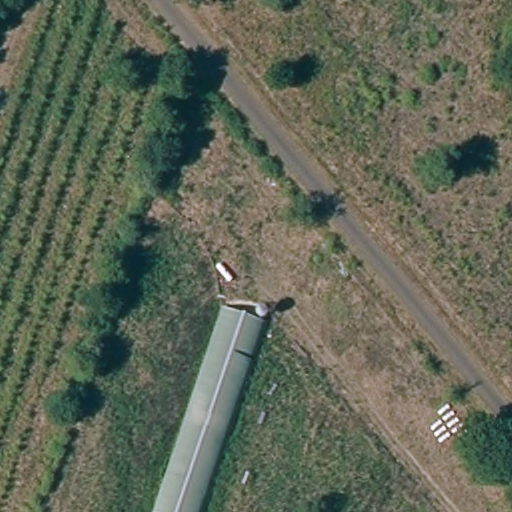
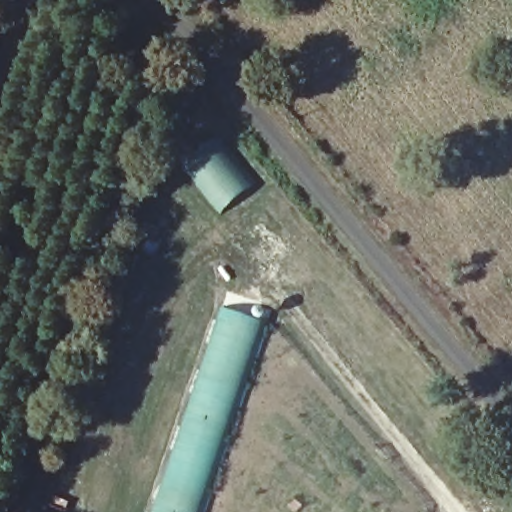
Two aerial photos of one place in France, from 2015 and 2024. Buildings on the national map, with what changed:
new [(255,184),(222,213),(182,165),(218,136),(255,184)]
unchanged [(222,313),(266,328),(204,512),(155,512),(222,313)]

